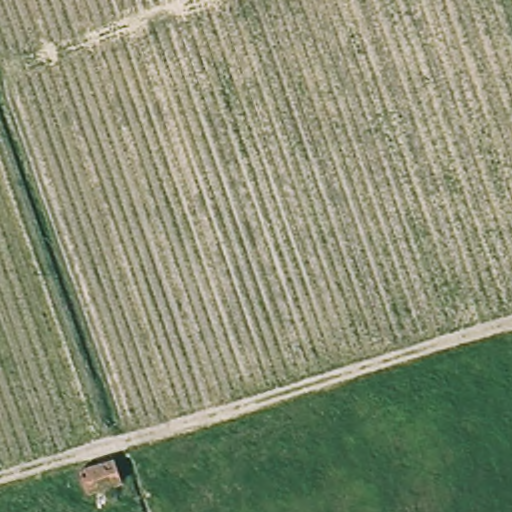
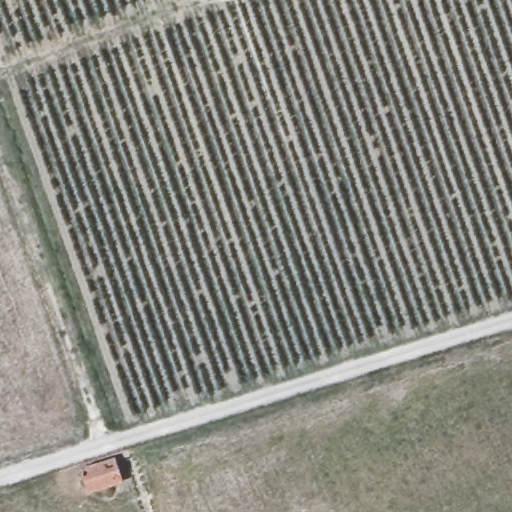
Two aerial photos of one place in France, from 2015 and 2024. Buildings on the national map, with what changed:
unchanged [(117,460),(125,484),(87,495),(79,471),(117,460)]

